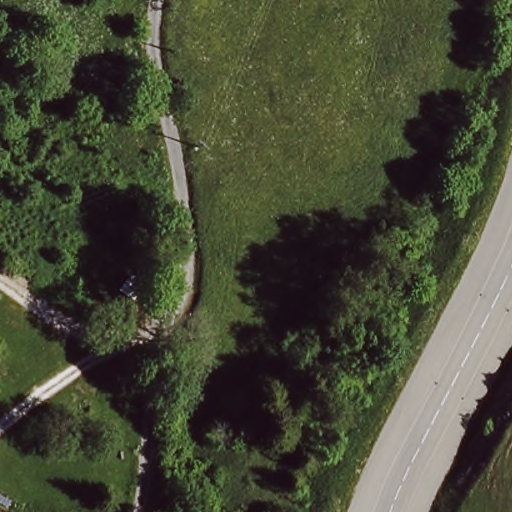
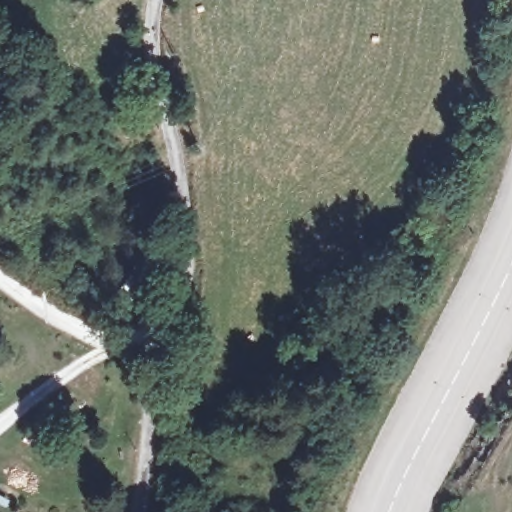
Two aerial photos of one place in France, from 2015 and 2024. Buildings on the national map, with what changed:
unchanged [(144,316),(127,330),(114,313),(132,299),(144,316)]

